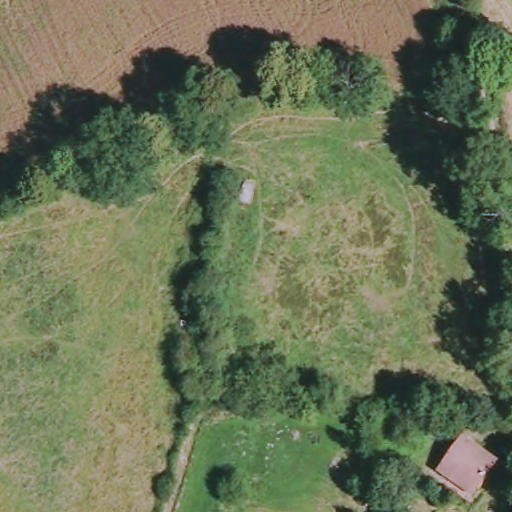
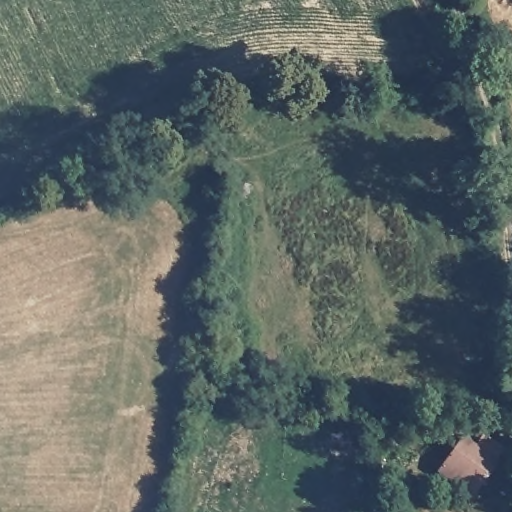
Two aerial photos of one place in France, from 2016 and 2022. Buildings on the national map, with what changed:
unchanged [(444,467),(467,437),(503,464),(479,494),(444,467)]

